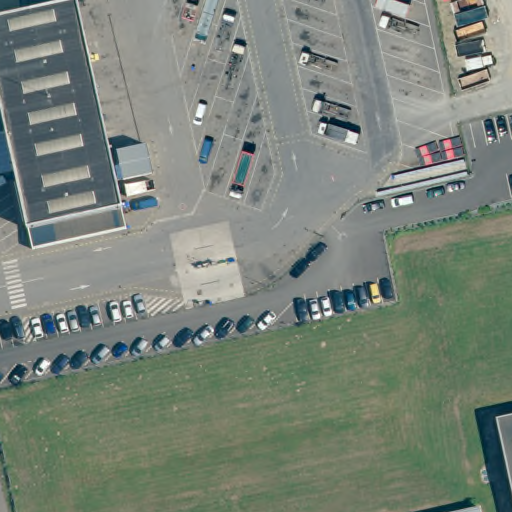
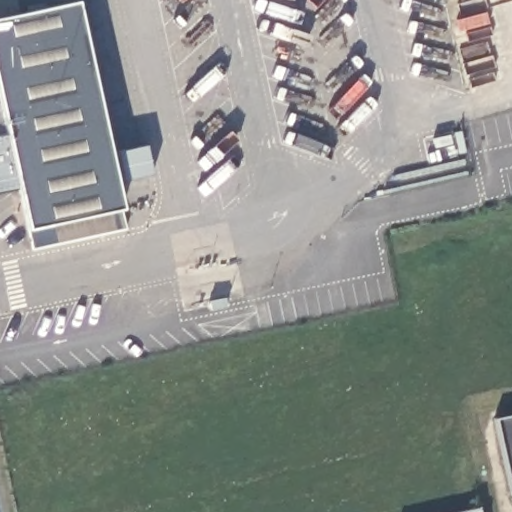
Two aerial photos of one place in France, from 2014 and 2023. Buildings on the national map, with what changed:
unchanged [(77,1),(121,208),(27,229),(7,134),(0,135),(0,18),(77,1)]
unchanged [(121,208),(126,232),(31,249),(27,229),(121,208)]
unchanged [(499,418),(501,425),(512,423),(512,500),(494,419),(499,418)]
unchanged [(479,506),(480,512),(449,512),(479,506)]

